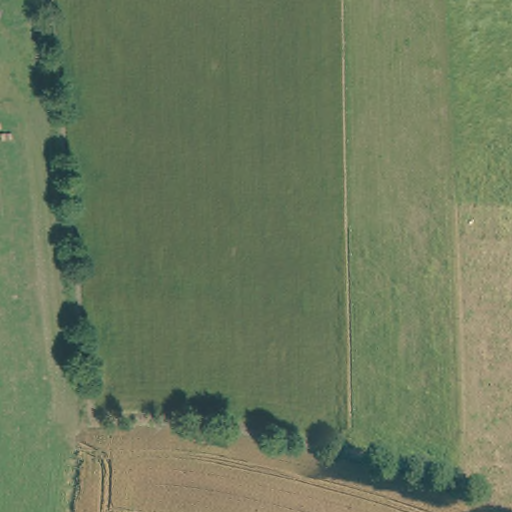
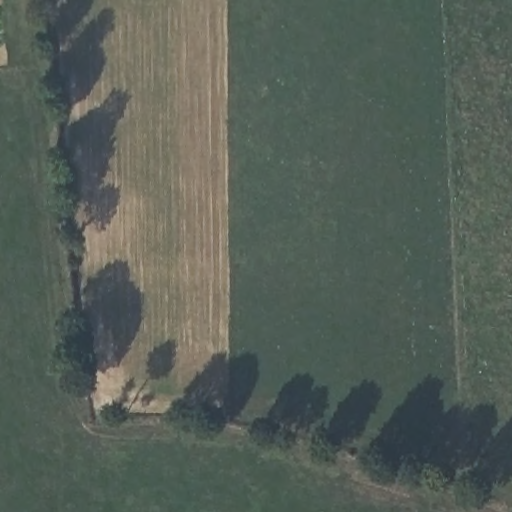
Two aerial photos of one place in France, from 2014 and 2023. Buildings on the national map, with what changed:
[]

